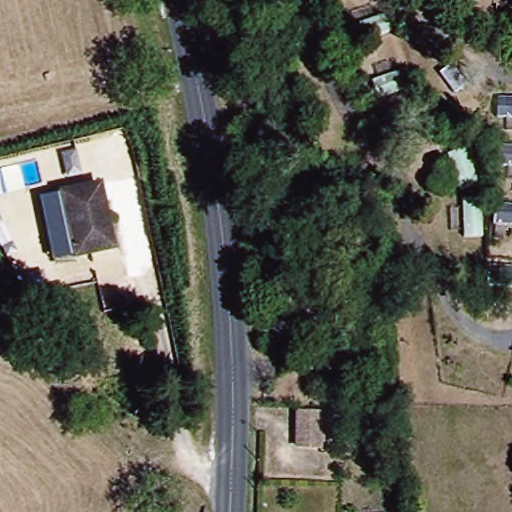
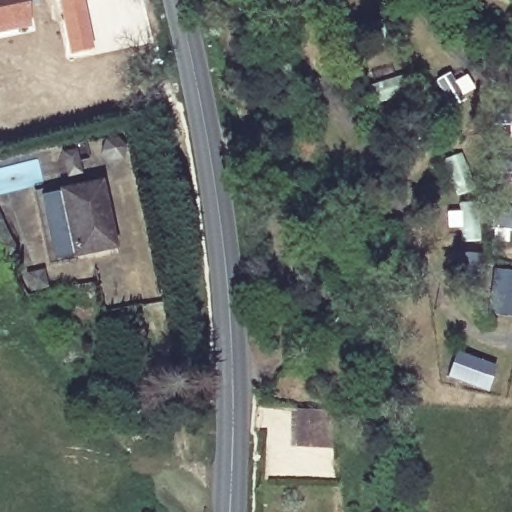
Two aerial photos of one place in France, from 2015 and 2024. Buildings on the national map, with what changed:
new [(33,28),(0,35),(0,0),(28,0),(33,28)]
new [(95,48),(70,54),(59,0),(84,0),(95,48)]
unchanged [(329,2),(328,0),(336,0),(329,2)]
unchanged [(402,71),(408,92),(371,102),(365,82),(402,71)]
unchanged [(460,152),(473,187),(456,195),(440,161),(460,152)]
unchanged [(111,245),(73,254),(59,192),(97,183),(111,245)]
unchanged [(436,267),(410,270),(406,233),(432,230),(436,267)]
unchanged [(11,328),(0,330),(0,317),(10,316),(11,328)]
unchanged [(326,446),(296,446),(298,411),(327,411),(326,446)]

